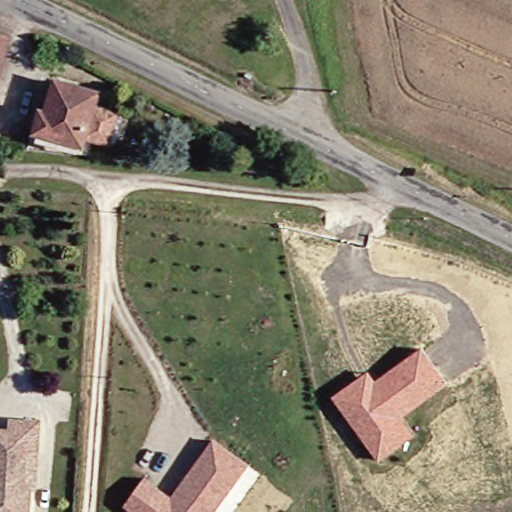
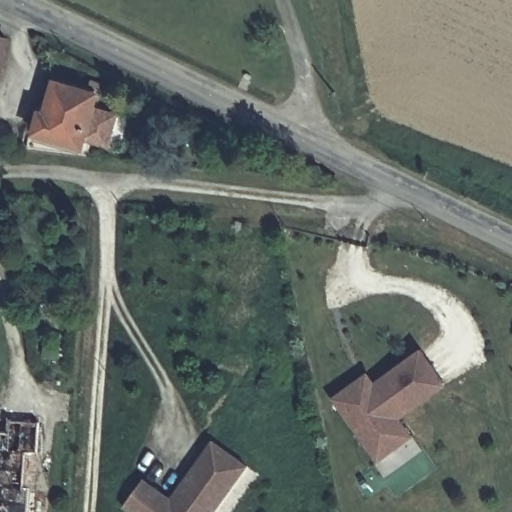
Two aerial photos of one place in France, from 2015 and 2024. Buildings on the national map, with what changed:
unchanged [(9,36),(1,128),(0,127),(0,35),(9,36)]
unchanged [(40,130),(49,130),(50,109),(56,109),(58,82),(100,87),(98,110),(122,112),(120,144),(96,141),(95,149),(39,144),(40,130)]
unchanged [(450,384),(400,417),(415,437),(378,461),(332,397),(370,371),(376,381),(422,347),(450,384)]
unchanged [(13,435),(14,423),(43,426),(41,455),(39,492),(34,492),(32,512),(0,512),(0,434),(13,435)]
unchanged [(144,477),(156,485),(171,496),(213,439),(249,465),(215,512),(135,512),(124,504),(144,477)]

